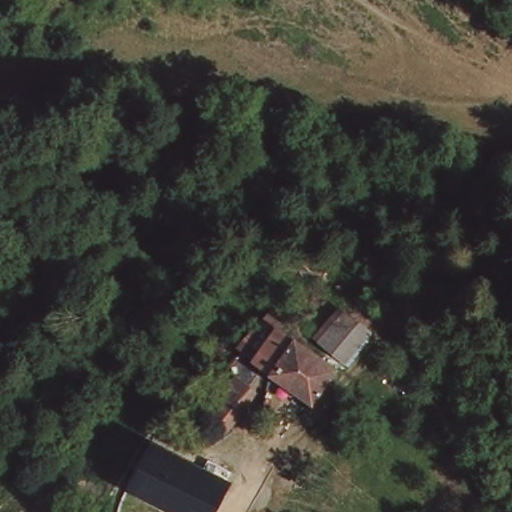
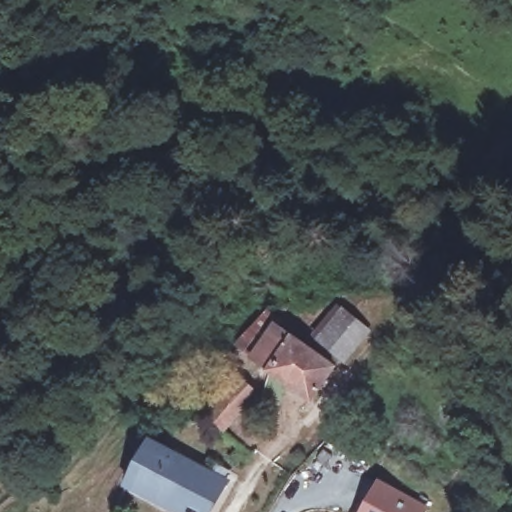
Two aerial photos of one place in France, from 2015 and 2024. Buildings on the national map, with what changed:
unchanged [(320,342),(342,309),(366,325),(343,358),(320,342)]
unchanged [(314,405),(250,367),(252,363),(240,355),(257,334),(267,330),(288,343),(285,348),(332,375),(314,405)]
unchanged [(205,417),(210,410),(223,396),(225,395),(235,383),(252,396),(242,406),(223,430),(205,417)]
unchanged [(120,486),(147,433),(170,445),(144,497),(120,486)]
unchanged [(170,445),(231,474),(223,488),(218,485),(206,512),(175,512),(144,497),(170,445)]
new [(379,480),(427,509),(426,512),(362,512),(379,480)]

